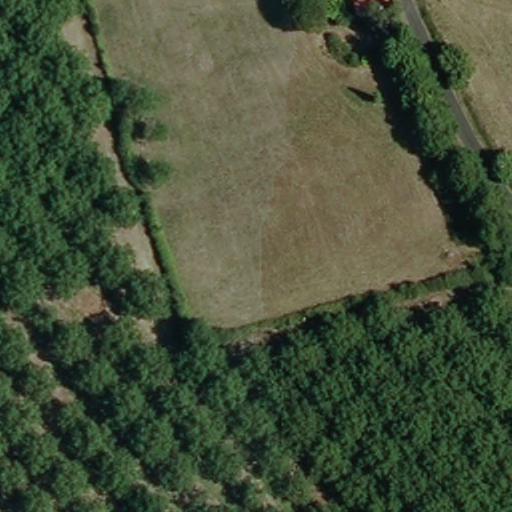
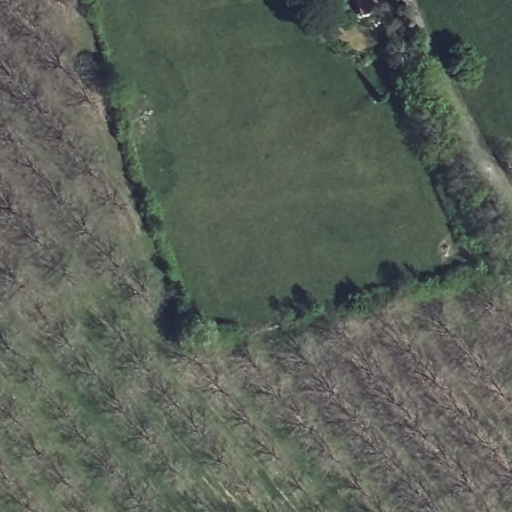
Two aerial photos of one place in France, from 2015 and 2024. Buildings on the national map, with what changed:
unchanged [(357,19),(353,0),(392,0),(395,12),(357,19)]

